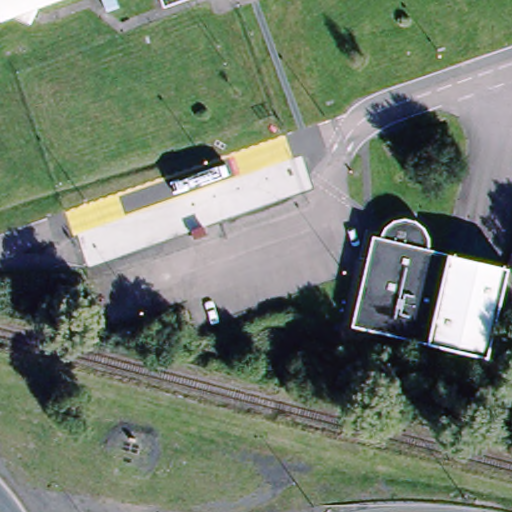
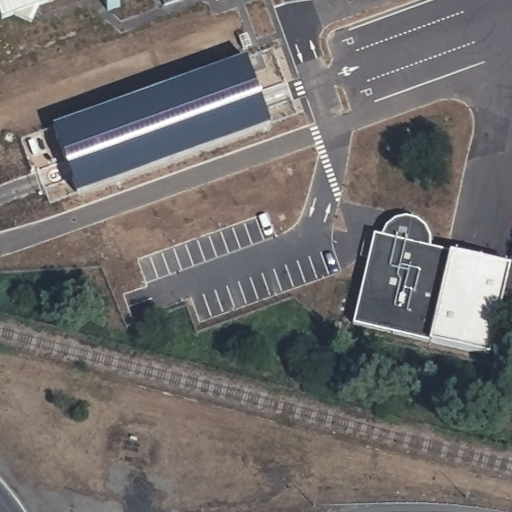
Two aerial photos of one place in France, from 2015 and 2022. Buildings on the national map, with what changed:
unchanged [(3,16),(0,8),(0,0),(47,0),(3,16)]
unchanged [(107,0),(115,0),(108,2),(107,0)]
unchanged [(166,2),(165,0),(172,0),(166,2)]
new [(248,56),(272,124),(76,190),(52,124),(248,56)]
unchanged [(432,234),(431,244),(512,263),(512,265),(491,352),(355,320),(377,231),(384,233),(390,219),(407,213),(419,216),(428,223),(432,234)]

